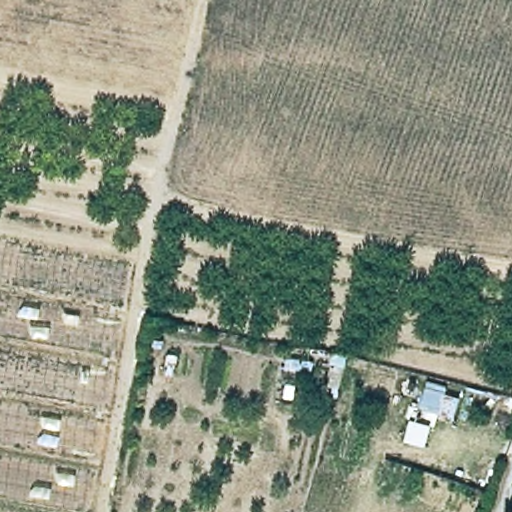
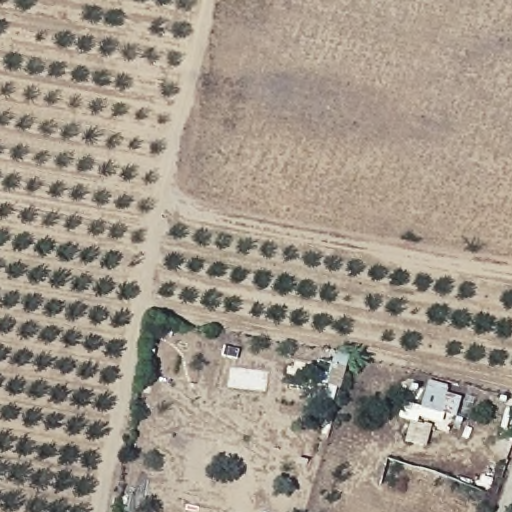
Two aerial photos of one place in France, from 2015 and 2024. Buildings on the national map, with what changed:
demolished [(81,512),(0,512),(0,244),(121,266),(81,512)]
unchanged [(443,392),(441,400),(458,402),(452,426),(416,420),(422,388),(443,392)]

